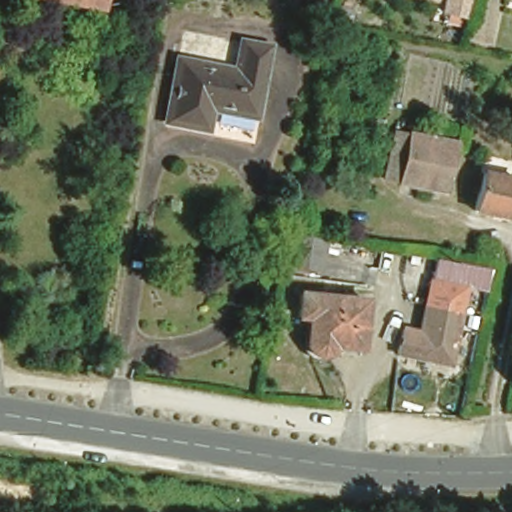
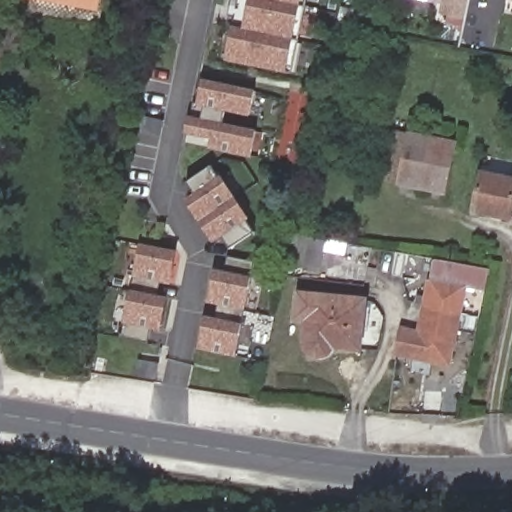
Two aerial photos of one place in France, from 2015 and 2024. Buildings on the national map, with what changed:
unchanged [(75,4),(57,0),(101,0),(99,9),(75,4)]
new [(286,71),(285,74),(225,60),(229,38),(232,25),(234,17),(228,16),(230,5),(235,7),(237,0),(307,0),(291,73),(286,71)]
unchanged [(439,16),(442,0),(470,0),(464,20),(439,16)]
unchanged [(509,0),(512,0),(512,7),(507,6),(509,0)]
demolished [(251,120),(207,110),(202,132),(161,122),(177,56),(235,70),(241,41),(268,48),(251,120)]
new [(193,102),(197,103),(200,88),(202,79),(255,90),(254,100),(250,116),(225,111),(222,123),(256,130),(255,140),(250,159),(209,150),(211,140),(185,134),(186,125),(189,115),(190,116),(193,102)]
unchanged [(451,145),(442,193),(395,184),(405,136),(451,145)]
new [(200,222),(190,207),(184,200),(194,193),(186,182),(210,165),(218,177),(220,175),(226,183),(235,197),(240,205),(250,219),(247,220),(255,232),(230,249),(222,237),(214,243),(204,229),(200,222)]
unchanged [(512,177),(512,204),(511,204),(508,217),(472,211),(480,171),(512,177)]
new [(295,231),(323,237),(321,250),(316,268),(287,265),(292,243),(295,231)]
new [(133,277),(138,255),(140,243),(178,251),(176,262),(171,285),(161,283),(159,295),(169,297),(166,309),(161,332),(151,330),(148,343),(121,337),(124,324),(128,301),(130,290),(133,277)]
new [(206,303),(211,280),(214,268),(225,271),(228,256),(255,262),(252,276),(250,288),(245,311),(242,323),(244,323),(241,335),(236,357),(197,350),(202,327),(205,315),(215,317),(217,305),(206,303)]
unchanged [(454,368),(402,359),(406,333),(425,336),(436,273),(438,261),(488,271),(486,285),(485,293),(468,290),(454,368)]
unchanged [(358,350),(335,347),(334,348),(333,348),(333,349),(332,350),(331,351),(331,352),(330,352),(330,353),(328,354),(328,355),(327,355),(326,356),(325,356),(325,357),(324,357),(323,358),(321,358),(320,358),(318,358),(317,358),(315,358),(314,357),(313,357),(311,356),(310,355),(308,353),(307,352),(307,351),(306,350),(306,348),(305,347),(305,345),(305,344),(305,342),(308,321),(296,319),(299,295),(365,303),(358,350)]
new [(159,363),(156,380),(135,376),(138,359),(159,363)]
unchanged [(194,507),(194,504),(217,506),(217,512),(193,512),(194,507)]

